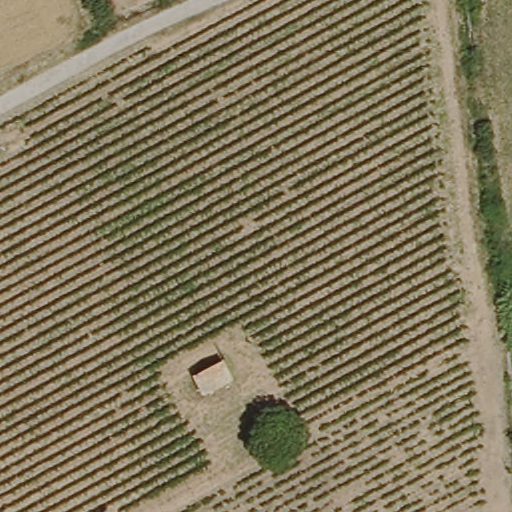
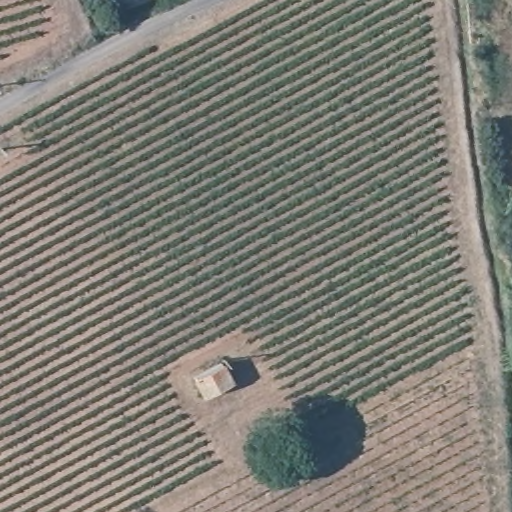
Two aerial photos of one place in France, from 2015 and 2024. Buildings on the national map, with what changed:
unchanged [(225,377),(199,389),(191,371),(217,361),(225,377)]

